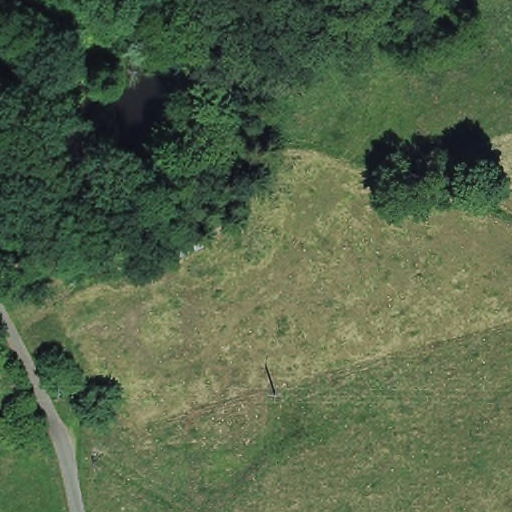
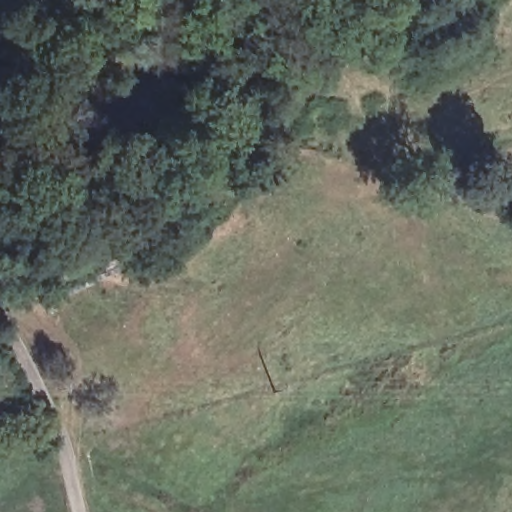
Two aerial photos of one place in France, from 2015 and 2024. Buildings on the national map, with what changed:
[]

